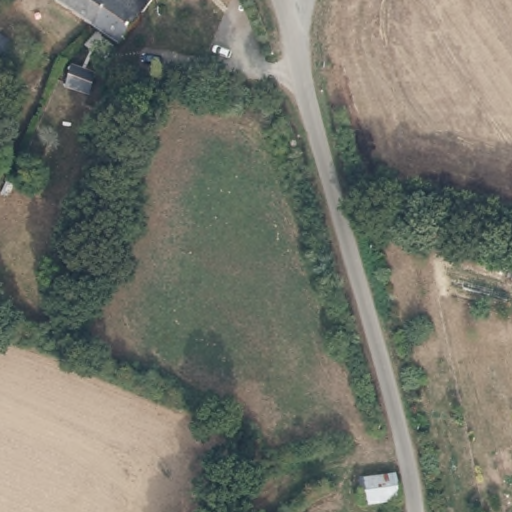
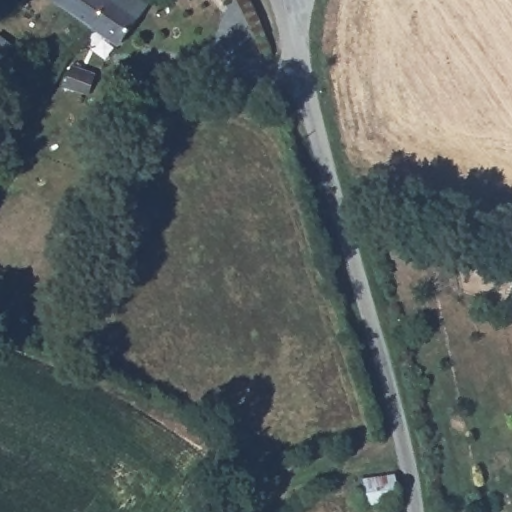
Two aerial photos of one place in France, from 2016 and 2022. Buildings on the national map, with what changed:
unchanged [(53,0),(142,0),(117,47),(53,0)]
unchanged [(402,502),(365,505),(361,482),(399,479),(402,502)]

